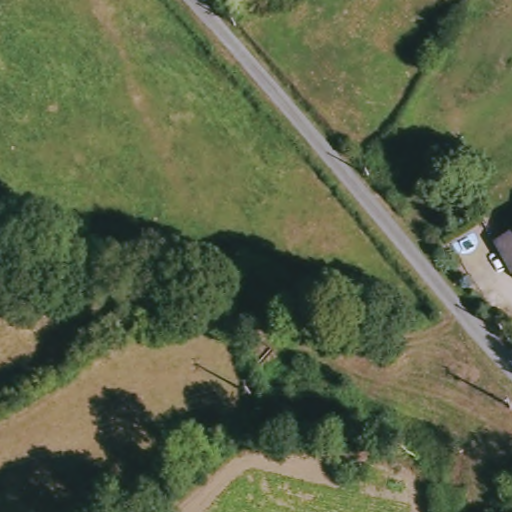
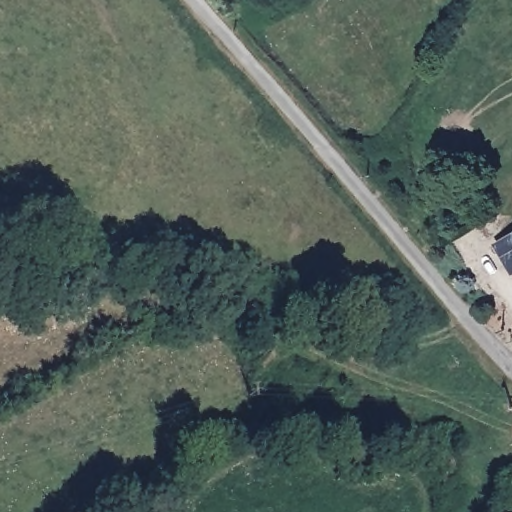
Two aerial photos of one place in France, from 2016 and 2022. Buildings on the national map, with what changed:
unchanged [(492,237),(512,226),(512,264),(507,267),(492,237)]

